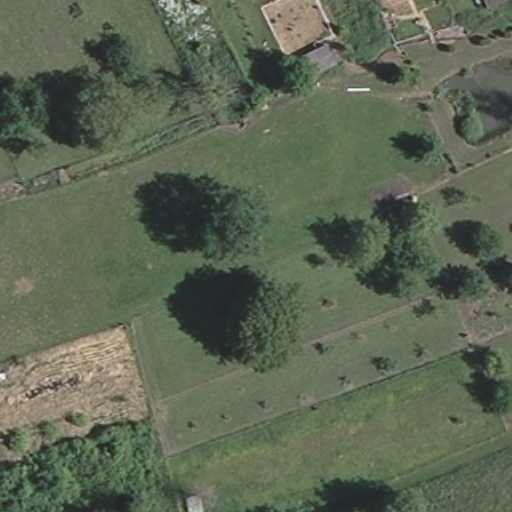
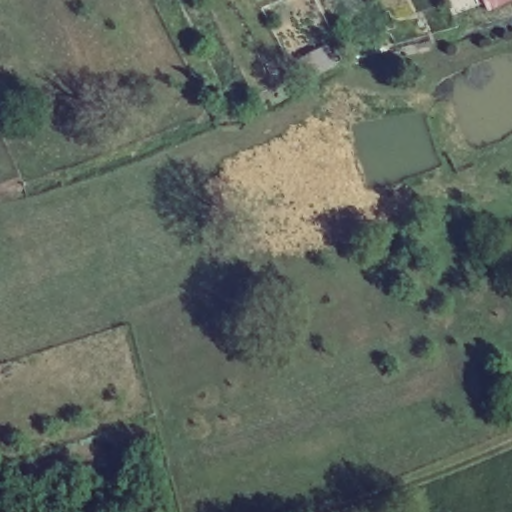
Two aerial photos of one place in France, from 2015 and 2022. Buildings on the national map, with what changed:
unchanged [(485,0),(510,0),(490,10),(485,0)]
unchanged [(337,65),(320,74),(305,81),(302,78),(295,61),(329,45),(335,61),(337,65)]

